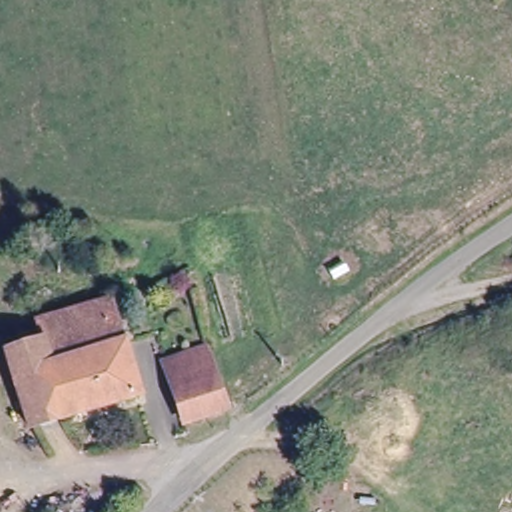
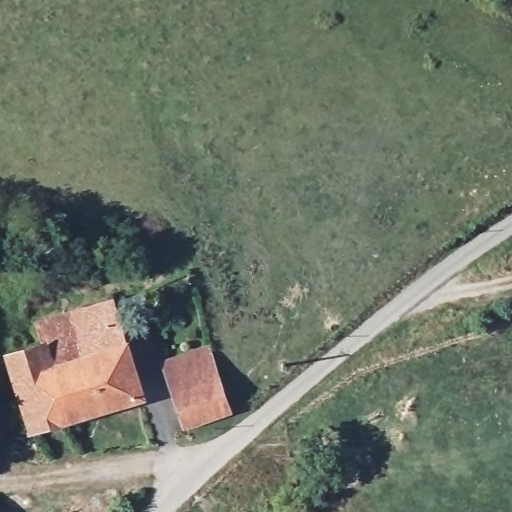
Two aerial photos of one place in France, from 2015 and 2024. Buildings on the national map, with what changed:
unchanged [(144,389),(35,423),(14,352),(45,341),(39,317),(111,294),(113,297),(144,389)]
unchanged [(161,360),(206,345),(211,365),(170,381),(161,360)]
unchanged [(228,401),(184,418),(170,381),(211,365),(228,401)]

